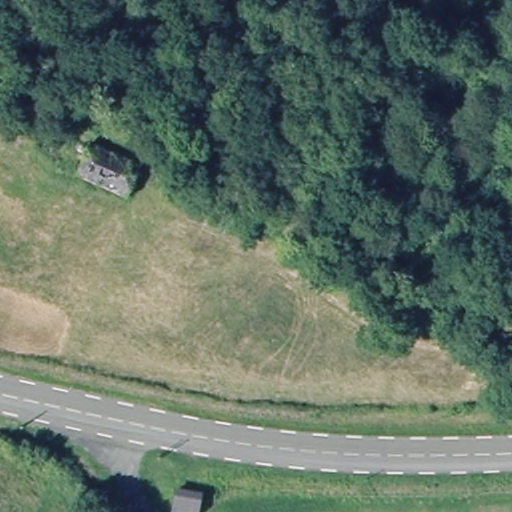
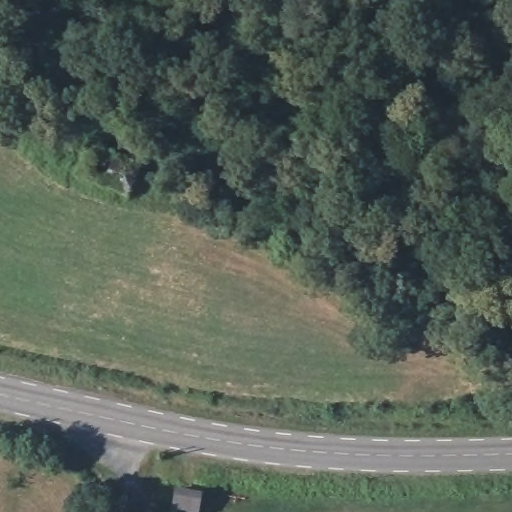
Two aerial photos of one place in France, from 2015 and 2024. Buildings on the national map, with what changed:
unchanged [(127,197),(78,174),(90,145),(139,166),(127,197)]
unchanged [(203,512),(171,512),(174,486),(207,490),(203,512)]

